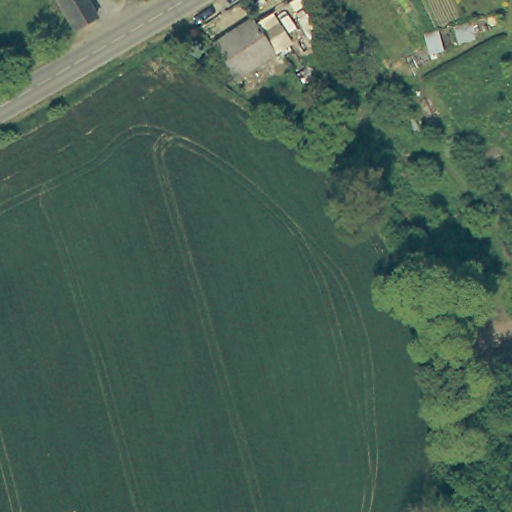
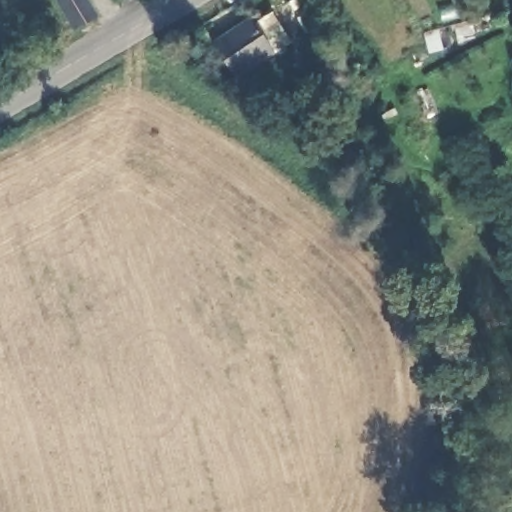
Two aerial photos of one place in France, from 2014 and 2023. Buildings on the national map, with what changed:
unchanged [(97,15),(76,27),(62,0),(89,0),(97,15)]
unchanged [(221,40),(251,23),(272,58),(254,69),(234,80),(214,44),(221,40)]

